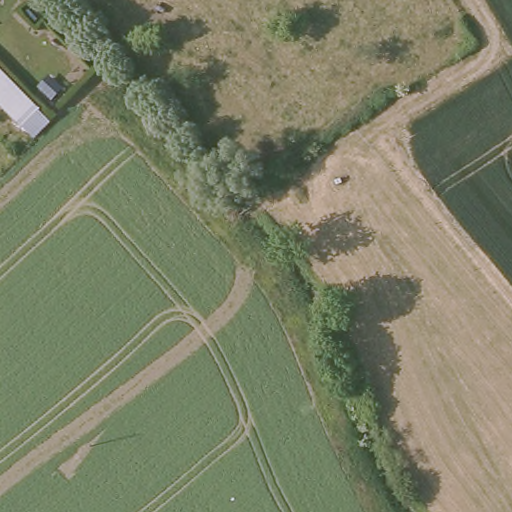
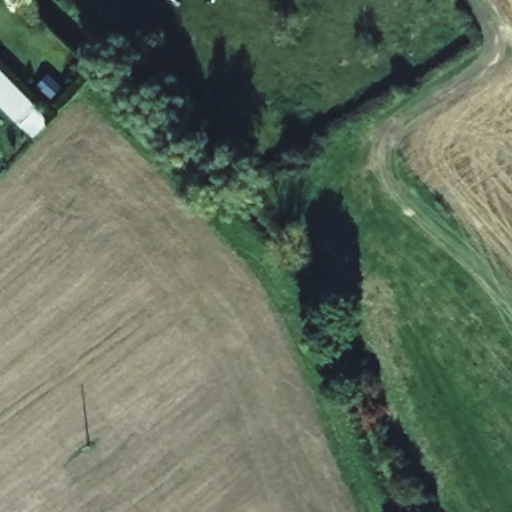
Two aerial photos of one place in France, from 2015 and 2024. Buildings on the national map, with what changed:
unchanged [(57,117),(36,136),(0,100),(0,59),(57,117)]

